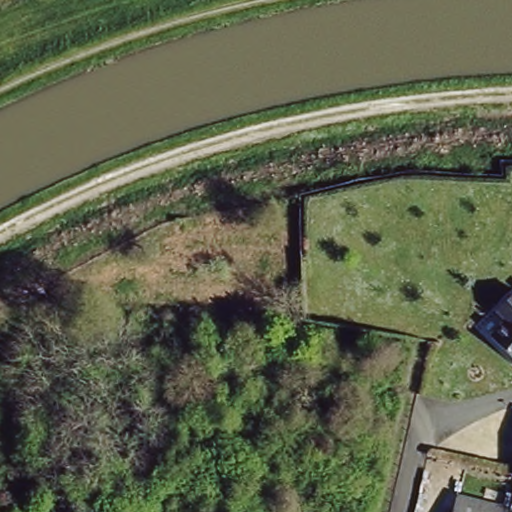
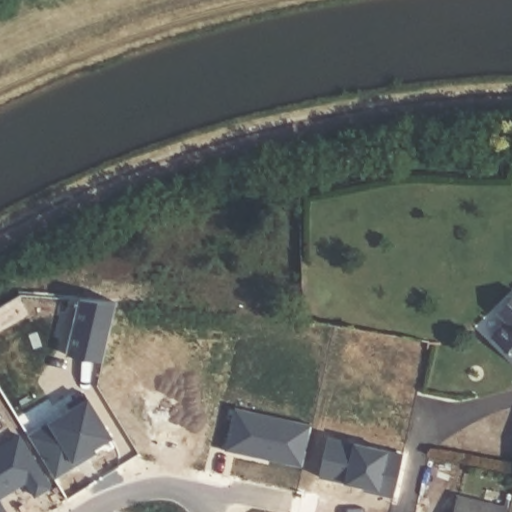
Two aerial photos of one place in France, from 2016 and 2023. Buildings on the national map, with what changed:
unchanged [(493,310),(512,293),(512,354),(492,337),(507,322),(493,310)]
new [(78,304),(115,304),(103,363),(67,355),(78,304)]
new [(76,466),(55,479),(28,435),(70,410),(67,404),(84,394),(112,438),(91,451),(94,455),(76,466)]
new [(225,450),(235,408),(312,425),(302,467),(269,460),(258,458),(225,450)]
new [(329,438),(402,455),(392,498),(376,494),(377,490),(320,477),(329,438)]
unchanged [(452,512),(455,496),(510,509),(510,512),(452,512)]

